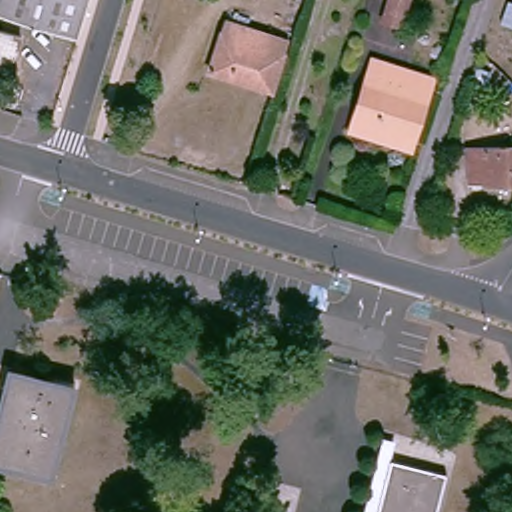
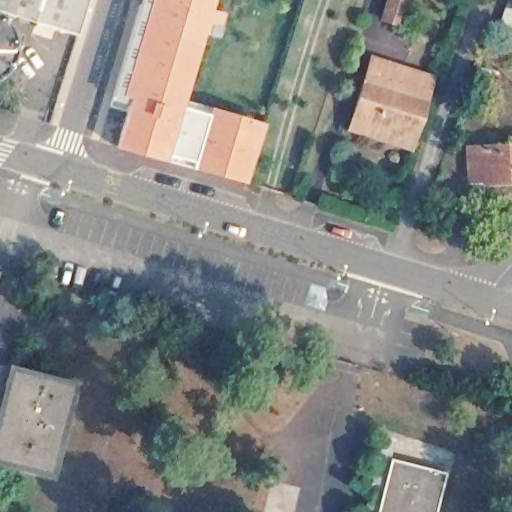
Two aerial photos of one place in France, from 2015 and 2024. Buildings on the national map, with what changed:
unchanged [(0,0),(88,0),(77,33),(0,7),(0,0)]
new [(124,109),(121,108),(125,96),(118,95),(147,0),(214,0),(212,7),(225,10),(220,35),(205,33),(195,59),(183,102),(165,161),(114,148),(124,109)]
unchanged [(399,30),(382,24),(390,0),(409,0),(399,30)]
unchanged [(498,25),(506,0),(510,1),(511,0),(512,0),(512,29),(498,25)]
demolished [(229,18),(251,25),(274,32),(291,38),(275,86),(214,67),(229,18)]
unchanged [(357,127),(361,114),(382,55),(436,71),(417,132),(413,145),(357,127)]
new [(183,102),(207,109),(192,168),(165,161),(183,102)]
new [(207,109),(208,105),(264,120),(247,183),(192,168),(207,109)]
unchanged [(471,146),(512,145),(512,180),(471,180),(471,146)]
unchanged [(0,273),(1,273),(0,278),(0,273)]
unchanged [(52,468),(0,455),(0,424),(15,363),(75,378),(52,468)]
unchanged [(445,475),(435,512),(377,512),(391,460),(445,475)]
unchanged [(296,494),(292,512),(259,512),(265,486),(296,494)]

